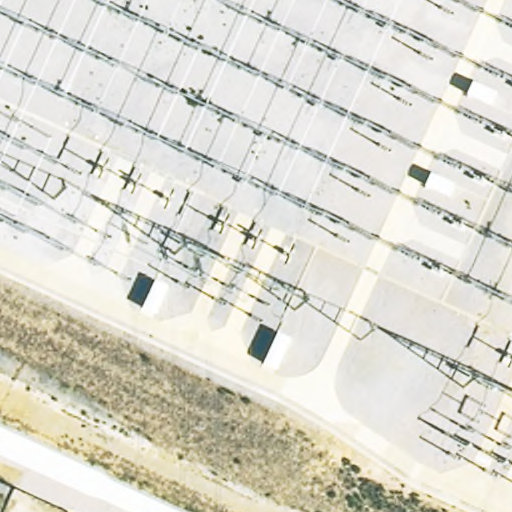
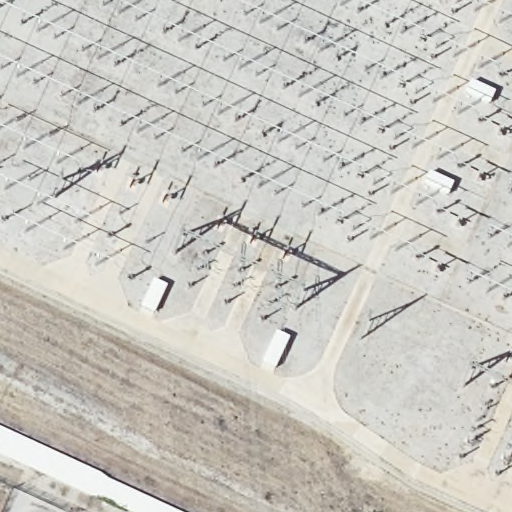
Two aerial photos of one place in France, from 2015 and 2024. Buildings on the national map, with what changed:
unchanged [(0,429),(178,512),(131,512),(0,452),(0,429)]

